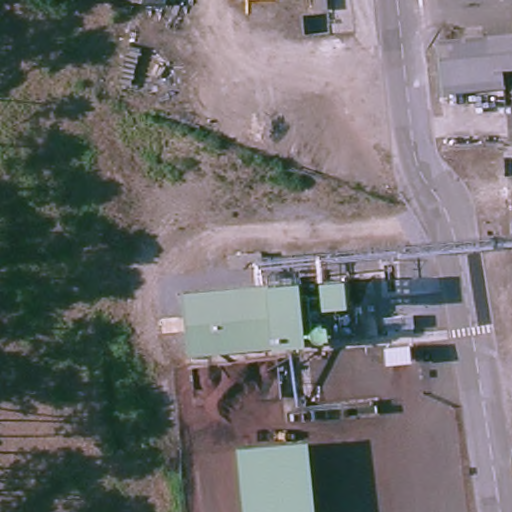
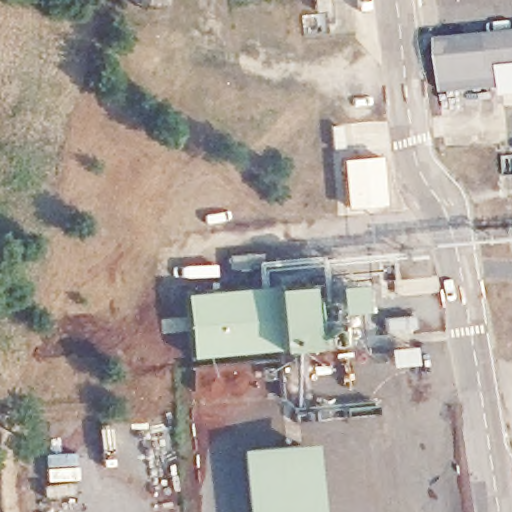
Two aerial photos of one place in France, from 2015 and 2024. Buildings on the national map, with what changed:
unchanged [(165,3),(150,0),(166,0),(165,3)]
unchanged [(512,71),(507,72),(509,87),(512,86),(512,102),(507,103),(504,90),(444,97),(437,41),(512,34),(512,71)]
new [(379,153),(383,203),(344,206),(340,157),(379,153)]
unchanged [(270,283),(303,280),(324,281),(351,278),(354,305),(328,308),(305,307),(308,343),(277,346),(189,354),(184,292),(270,283)]
unchanged [(319,512),(245,512),(238,448),(310,441),(319,512)]

